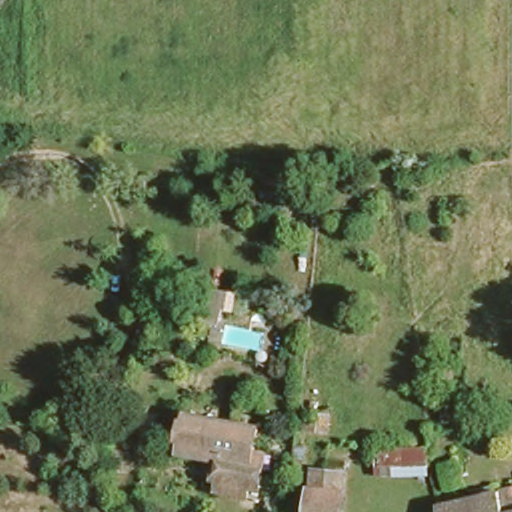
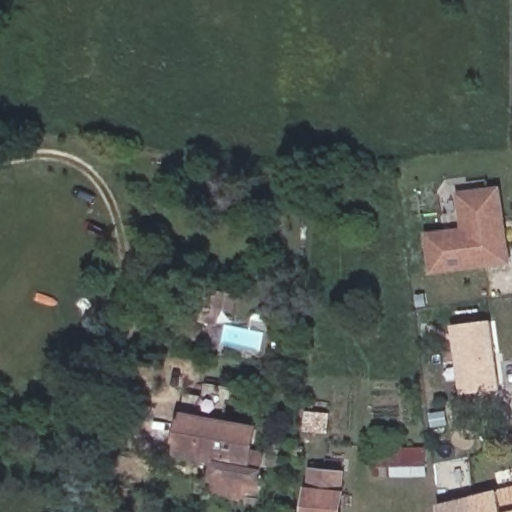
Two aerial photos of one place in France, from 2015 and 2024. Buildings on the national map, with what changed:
new [(432,273),(426,232),(462,228),(458,191),(502,185),(511,263),(432,273)]
new [(461,395),(452,325),(492,320),(501,388),(461,395)]
new [(183,408),(209,410),(207,441),(220,441),(219,462),(176,455),(183,408)]
unchanged [(209,410),(251,413),(249,445),(259,445),(257,476),(250,475),(249,486),(218,484),(219,462),(220,441),(207,441),(209,410)]
unchanged [(331,417),(330,433),(304,431),(305,415),(331,417)]
unchanged [(388,457),(413,458),(413,470),(387,469),(388,457)]
unchanged [(307,512),(308,477),(338,478),(337,512),(307,512)]
unchanged [(490,494),(489,485),(512,482),(512,512),(441,512),(440,502),(490,494)]

